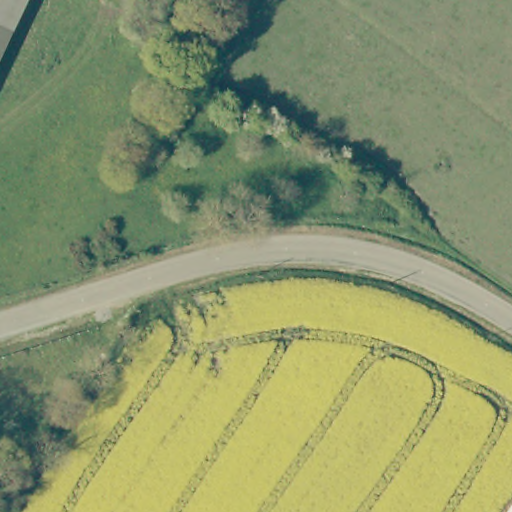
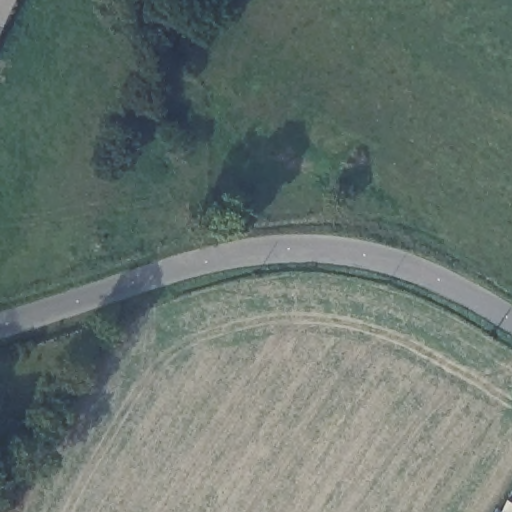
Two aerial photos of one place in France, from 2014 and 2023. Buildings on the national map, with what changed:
unchanged [(0,47),(0,0),(22,0),(0,47)]

